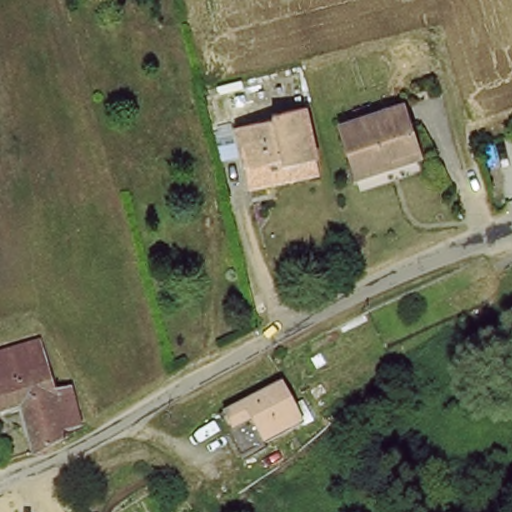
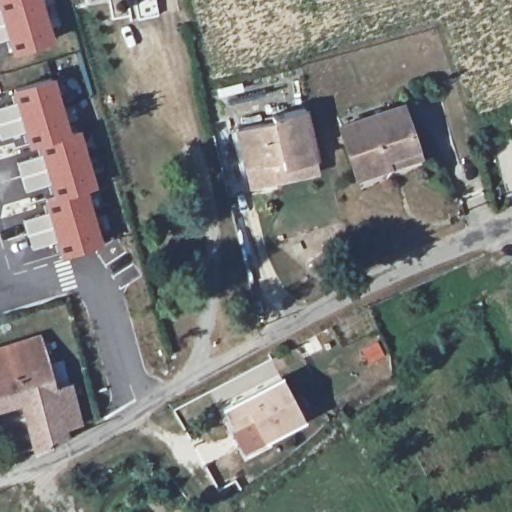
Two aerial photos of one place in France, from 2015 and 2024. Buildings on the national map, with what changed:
new [(53,40),(7,54),(3,43),(0,44),(0,0),(42,0),(53,40)]
unchanged [(87,5),(85,0),(109,0),(87,5)]
new [(9,87),(53,75),(70,130),(35,146),(27,149),(22,135),(0,141),(0,106),(13,101),(9,87)]
unchanged [(281,122),(279,114),(308,107),(322,167),(248,182),(237,132),(281,122)]
unchanged [(405,112),(417,162),(352,179),(340,130),(405,112)]
new [(47,195),(45,189),(24,194),(15,160),(37,153),(35,146),(70,130),(80,127),(97,186),(87,189),(101,244),(59,256),(55,244),(31,250),(21,219),(45,211),(42,196),(47,195)]
unchanged [(0,414),(0,351),(35,343),(44,382),(62,378),(78,431),(63,440),(50,448),(36,455),(24,407),(0,414)]
unchanged [(275,373),(303,414),(246,460),(215,419),(275,373)]

